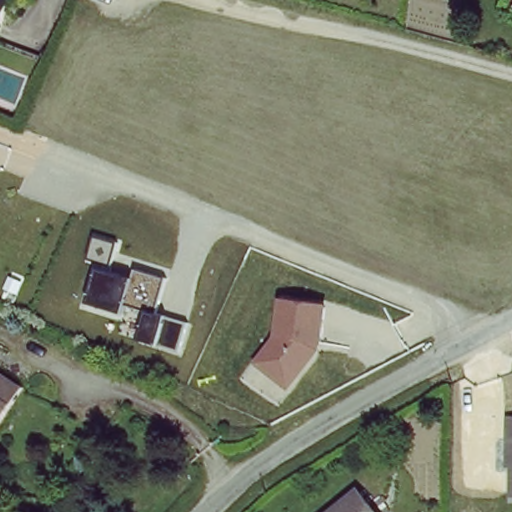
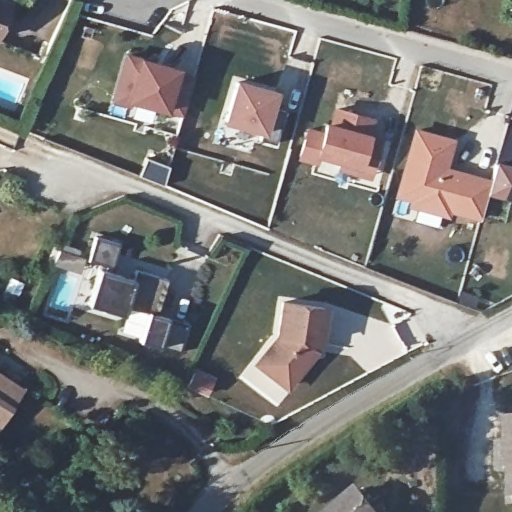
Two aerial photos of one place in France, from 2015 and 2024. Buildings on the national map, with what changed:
unchanged [(0,28),(0,2),(9,6),(0,28)]
new [(125,56),(155,65),(154,68),(162,70),(163,66),(175,70),(173,75),(192,80),(182,116),(129,101),(127,106),(113,101),(125,56)]
new [(263,133),(222,123),(234,76),(278,88),(272,106),(283,109),(274,143),(259,140),(263,133)]
new [(323,131),(325,123),(331,125),(336,109),(371,118),(367,135),(380,139),(371,175),(339,166),(340,159),(317,153),(315,161),(300,156),(307,128),(323,131)]
new [(416,131),(452,141),(444,169),(456,172),(491,182),(481,217),(449,209),(448,214),(412,205),(414,199),(399,195),(403,178),(416,131)]
new [(512,163),(512,201),(487,195),(491,182),(496,159),(512,163)]
unchanged [(84,261),(93,236),(118,244),(112,270),(133,276),(134,269),(165,278),(156,312),(187,322),(179,352),(137,341),(146,312),(126,306),(123,318),(86,306),(101,266),(84,261)]
unchanged [(322,349),(287,394),(251,364),(274,335),(281,300),(328,304),(322,349)]
unchanged [(0,422),(0,373),(22,388),(0,422)]
unchanged [(510,494),(511,466),(506,465),(506,439),(507,418),(512,418),(512,494),(510,494)]
unchanged [(376,512),(342,512),(362,495),(376,512)]

